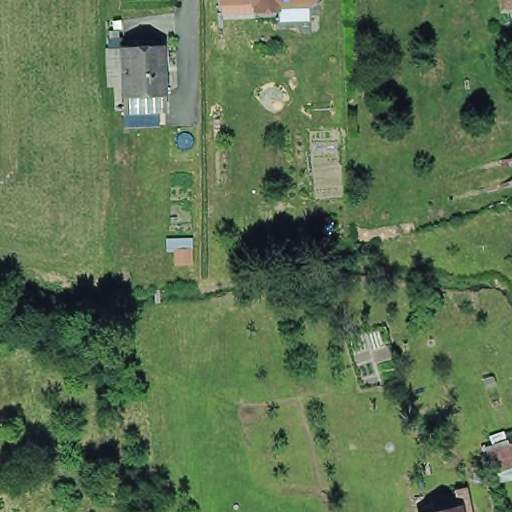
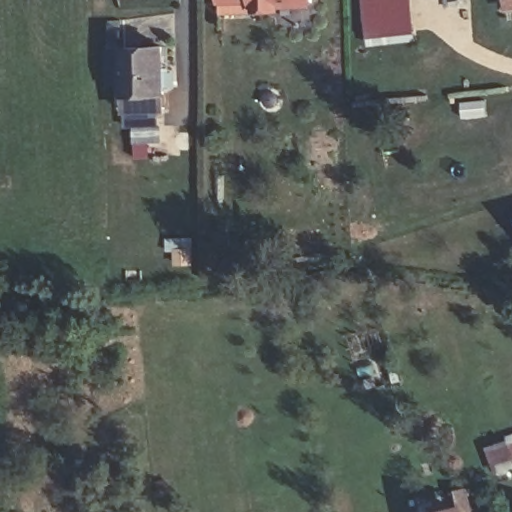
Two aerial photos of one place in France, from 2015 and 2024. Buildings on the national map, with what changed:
unchanged [(221,0),(313,0),(314,8),(279,9),(279,16),(256,17),(256,10),(251,10),(251,8),(221,9),(221,0)]
new [(418,31),(369,35),(365,0),(415,0),(418,31)]
unchanged [(503,5),(502,0),(512,0),(512,4),(503,5)]
unchanged [(111,33),(119,33),(120,41),(111,41),(111,33)]
unchanged [(129,107),(128,92),(127,77),(111,78),(109,47),(124,46),(163,43),(167,90),(168,105),(129,107)]
unchanged [(499,469),(491,445),(508,439),(512,452),(512,465),(499,469)]

